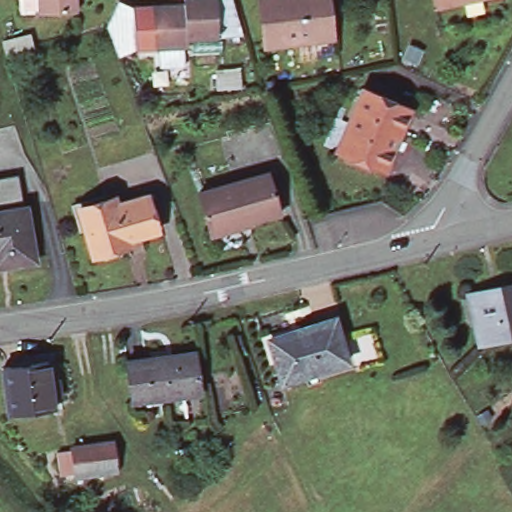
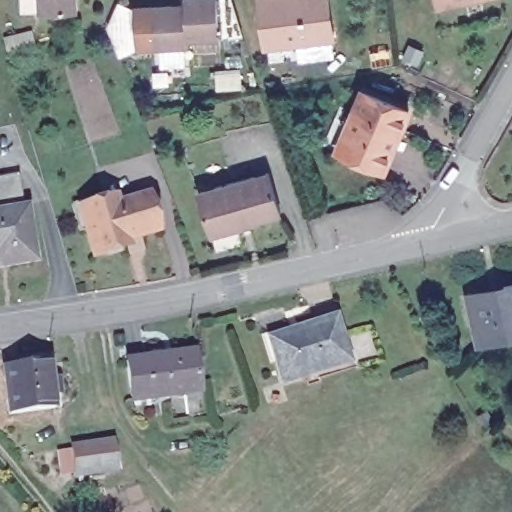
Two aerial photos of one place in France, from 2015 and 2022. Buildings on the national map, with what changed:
unchanged [(75,13),(40,14),(40,10),(24,11),(24,0),(85,0),(85,13),(75,13)]
unchanged [(240,39),(217,40),(185,42),(183,7),(183,0),(207,0),(230,0),(240,39)]
unchanged [(268,0),(326,0),(332,40),(307,43),(307,40),(267,46),(260,1),(268,0)]
unchanged [(437,7),(436,0),(476,0),(437,7)]
unchanged [(134,9),(152,9),(153,50),(136,51),(118,58),(107,29),(118,3),(134,9)]
unchanged [(183,7),(185,42),(185,48),(153,50),(152,9),(183,7)]
unchanged [(350,124),(363,91),(410,110),(401,133),(396,131),(391,143),(395,145),(385,169),(338,149),(325,144),(335,118),(350,124)]
unchanged [(403,149),(395,145),(401,133),(408,136),(403,149)]
unchanged [(0,179),(20,175),(26,208),(29,208),(38,263),(13,267),(0,269),(0,179)]
unchanged [(211,241),(209,233),(198,196),(267,176),(280,217),(239,228),(240,233),(211,241)]
unchanged [(131,252),(128,243),(93,252),(85,224),(80,225),(72,200),(84,197),(86,203),(115,195),(117,202),(147,193),(157,228),(140,233),(143,248),(131,252)]
unchanged [(512,340),(477,347),(463,292),(512,282),(512,340)]
unchanged [(335,314),(350,364),(280,384),(265,334),(335,314)]
unchanged [(192,351),(197,392),(130,397),(126,356),(192,351)]
unchanged [(45,363),(50,413),(9,417),(3,366),(45,363)]
unchanged [(99,444),(102,476),(61,479),(57,446),(99,444)]

